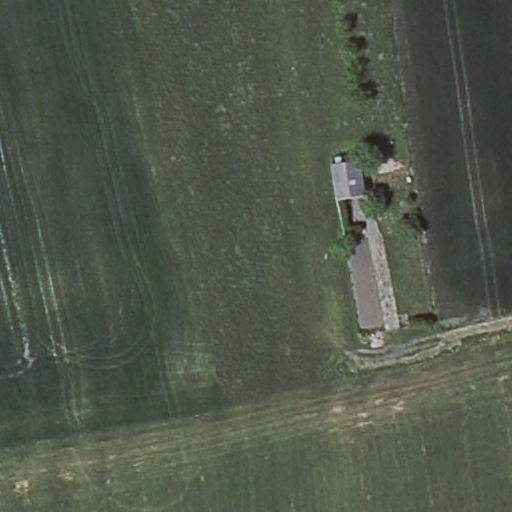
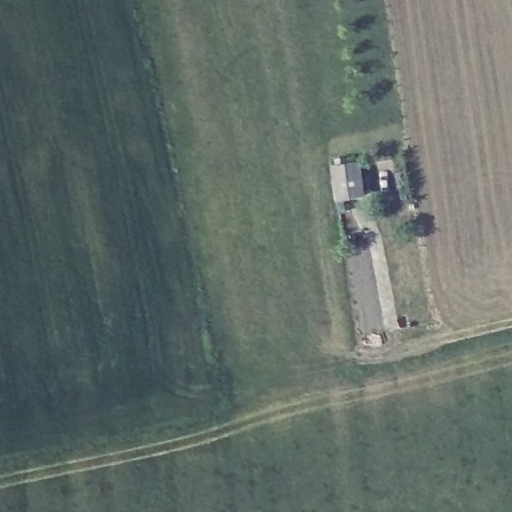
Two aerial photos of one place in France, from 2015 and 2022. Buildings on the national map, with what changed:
unchanged [(337,204),(330,166),(364,159),(369,199),(337,204)]

